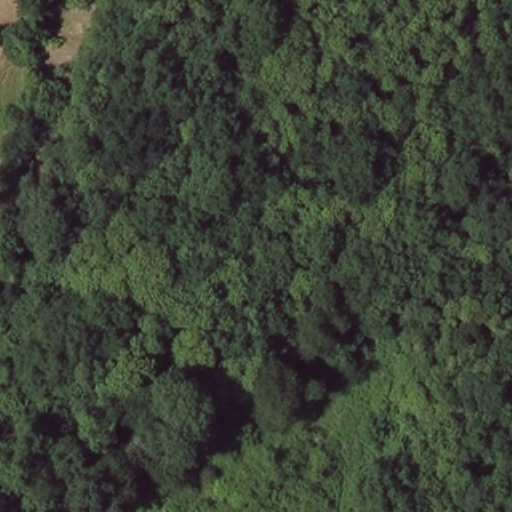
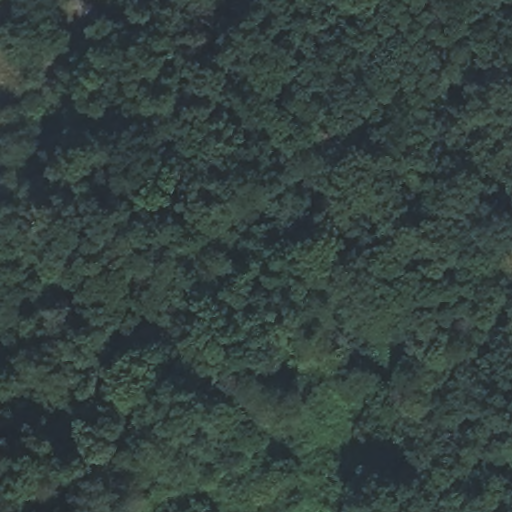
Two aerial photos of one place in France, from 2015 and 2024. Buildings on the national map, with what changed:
[]

